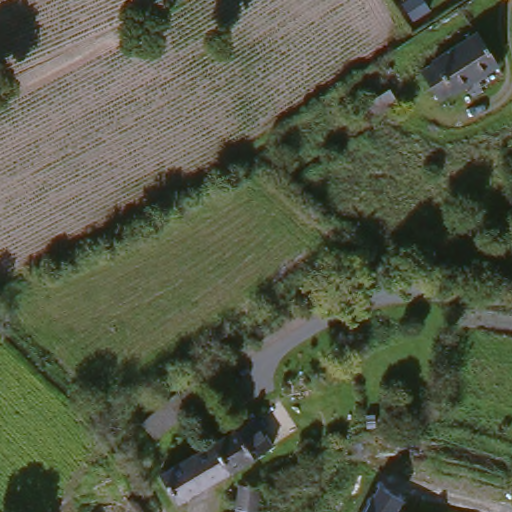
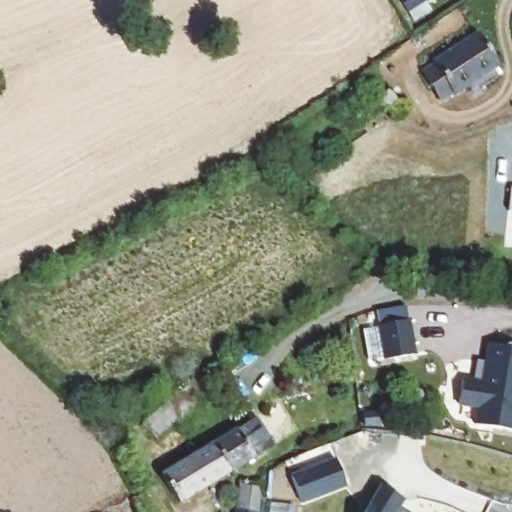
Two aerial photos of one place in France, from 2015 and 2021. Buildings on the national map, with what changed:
unchanged [(495,71),(453,98),(451,95),(438,102),(421,73),(433,66),(431,64),(474,38),(495,71)]
unchanged [(388,90),(396,102),(367,121),(359,109),(388,90)]
new [(406,305),(414,340),(384,345),(377,310),(406,305)]
new [(480,372),(484,343),(485,333),(492,334),(512,337),(512,420),(475,415),(477,397),(457,395),(460,370),(480,372)]
unchanged [(229,477),(215,449),(237,436),(261,423),(274,452),(254,463),(229,477)]
unchanged [(174,508),(160,482),(215,449),(229,477),(174,508)]
unchanged [(379,482),(406,498),(399,512),(360,512),(379,482)]
unchanged [(211,508),(228,511),(234,485),(257,489),(252,512),(210,512),(211,508)]

